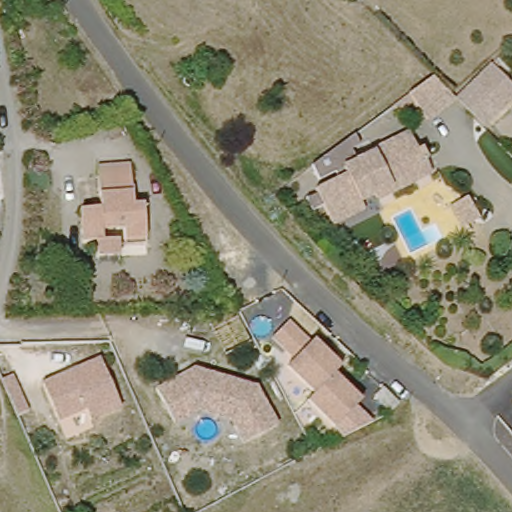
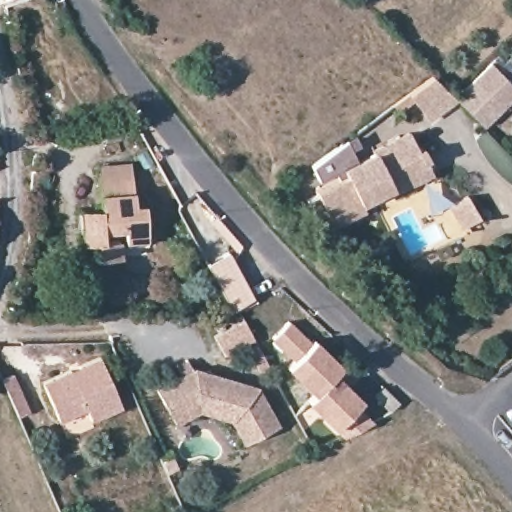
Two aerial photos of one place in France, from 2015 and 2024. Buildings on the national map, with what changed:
unchanged [(512,93),(512,98),(478,135),(449,105),(484,67),(512,93)]
unchanged [(423,77),(433,88),(445,101),(421,117),(416,112),(402,94),(423,77)]
unchanged [(376,151),(399,139),(409,133),(423,156),(402,168),(408,181),(390,191),(368,202),(355,209),(358,216),(334,228),(311,192),(378,153),(376,151)]
unchanged [(368,202),(390,191),(408,181),(402,168),(423,156),(425,155),(436,175),(388,203),(371,211),(368,202)]
unchanged [(137,199),(142,236),(118,238),(116,222),(95,223),(97,235),(110,235),(113,254),(91,255),(90,240),(69,240),(65,206),(91,204),(90,178),(88,160),(122,157),(123,175),(126,200),(137,199)]
unchanged [(461,209),(473,231),(455,241),(443,219),(461,209)]
new [(255,297),(231,309),(208,264),(230,252),(255,297)]
unchanged [(284,325),(288,321),(311,343),(336,367),(329,375),(356,400),(355,405),(368,422),(341,438),(330,427),(321,421),(295,422),(289,415),(304,402),(310,397),(282,370),(293,359),(277,346),(270,340),(284,325)]
unchanged [(98,362),(118,410),(88,421),(84,413),(57,423),(42,384),(98,362)]
unchanged [(179,416),(168,396),(161,382),(200,363),(265,386),(284,422),(264,432),(250,439),(236,416),(235,415),(204,404),(179,416)]
unchanged [(382,393),(391,384),(406,399),(398,407),(382,393)]

